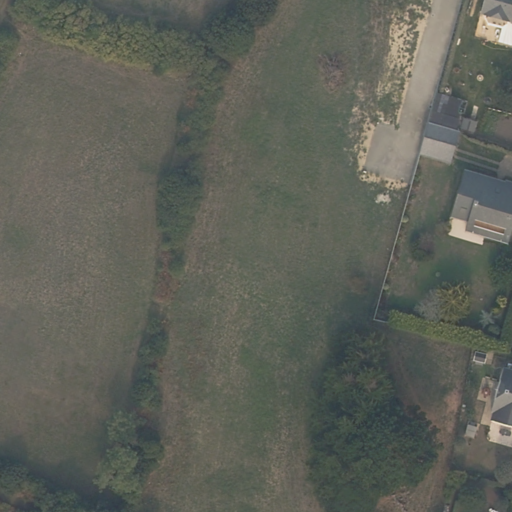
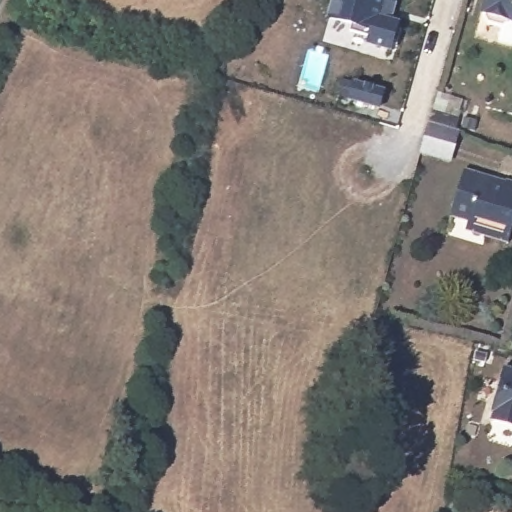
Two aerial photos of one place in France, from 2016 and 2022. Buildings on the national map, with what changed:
new [(369,37),(350,31),(350,25),(328,19),(333,0),(385,0),(381,16),(402,22),(393,51),(367,44),(369,37)]
unchanged [(510,36),(497,34),(501,19),(486,15),(484,9),(485,6),(480,4),(481,0),(512,0),(512,35),(510,36)]
unchanged [(451,159),(421,150),(431,118),(461,126),(451,159)]
unchanged [(461,216),(443,210),(456,168),(497,181),(498,178),(512,183),(512,212),(509,211),(500,238),(477,231),(458,225),(461,216)]
unchanged [(493,415),(495,409),(493,408),(506,362),(512,364),(512,421),(493,415)]

